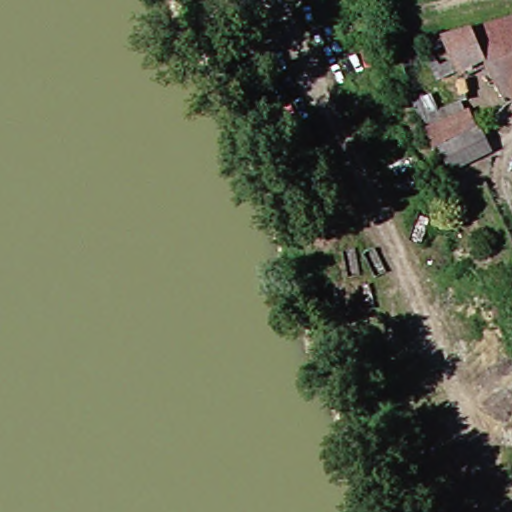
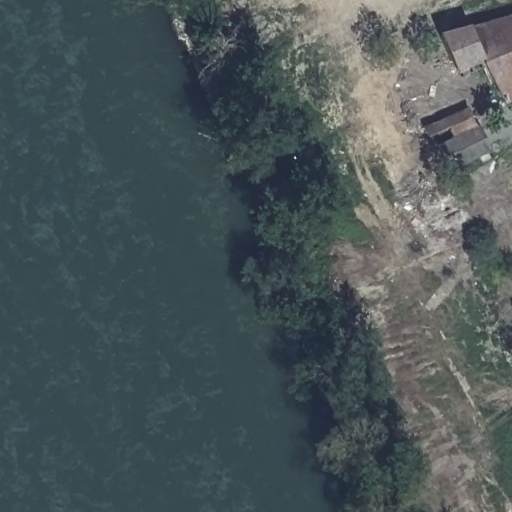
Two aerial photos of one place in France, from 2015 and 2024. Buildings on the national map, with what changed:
unchanged [(508,8),(512,7),(512,18),(508,8)]
unchanged [(456,68),(437,75),(430,59),(432,59),(422,33),(437,28),(508,8),(512,18),(512,101),(506,104),(486,65),(459,76),(456,68)]
unchanged [(417,86),(429,117),(457,107),(463,123),(428,138),(406,90),(417,86)]
unchanged [(436,141),(474,124),(479,137),(483,145),(471,150),(446,163),(442,155),(436,141)]

